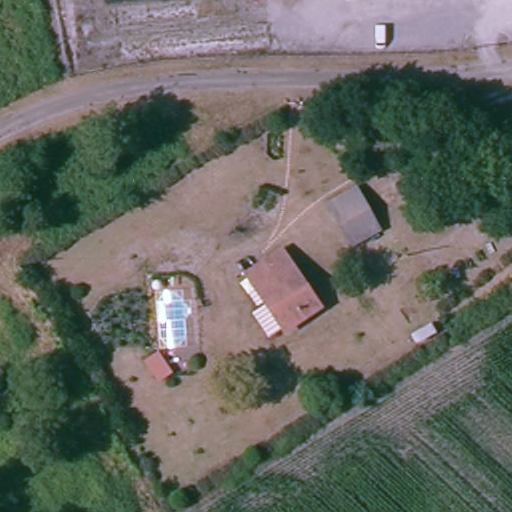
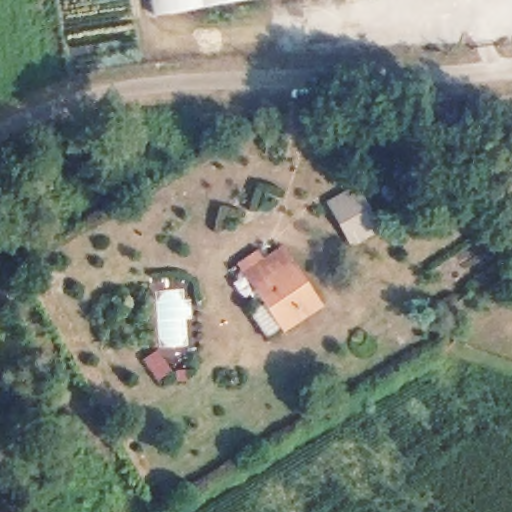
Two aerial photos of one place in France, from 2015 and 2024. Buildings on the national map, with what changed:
new [(157,16),(154,0),(248,0),(157,16)]
unchanged [(373,231),(347,246),(326,204),(351,189),(373,231)]
demolished [(0,224),(0,204),(8,220),(0,224)]
unchanged [(257,304),(241,274),(281,253),(313,313),(284,329),(273,335),(257,304)]

